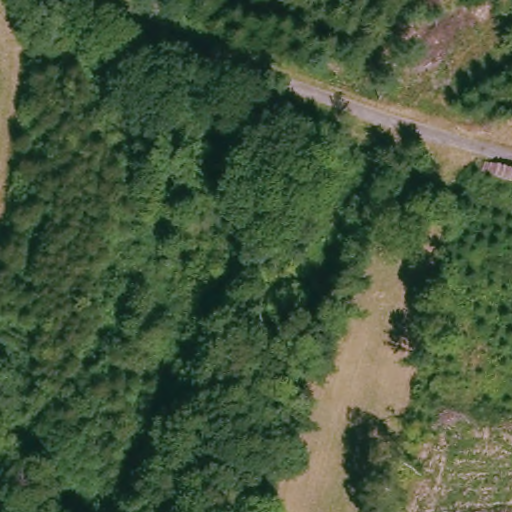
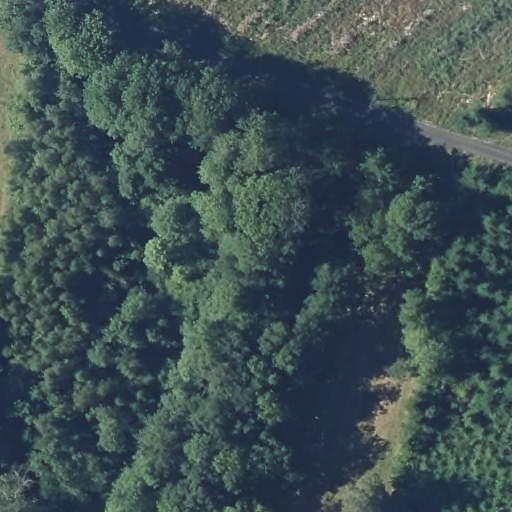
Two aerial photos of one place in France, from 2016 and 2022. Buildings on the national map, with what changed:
[]

